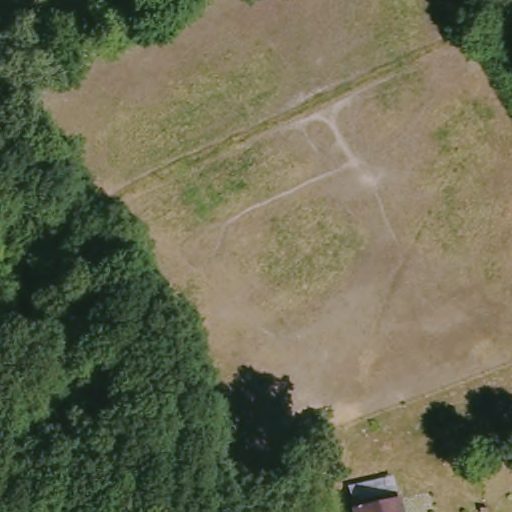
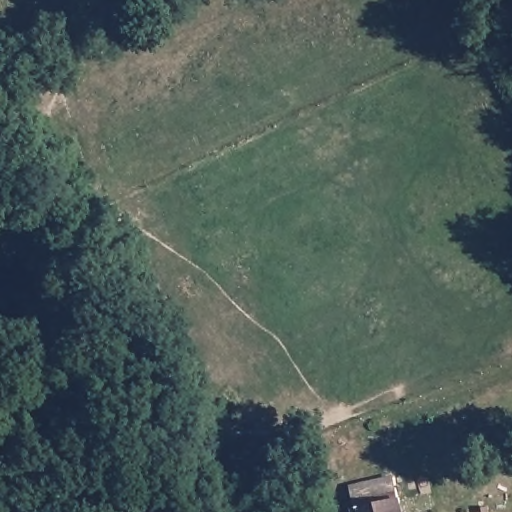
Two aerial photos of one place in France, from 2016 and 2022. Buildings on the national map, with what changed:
unchanged [(402,492),(406,512),(358,512),(356,502),(402,492)]

